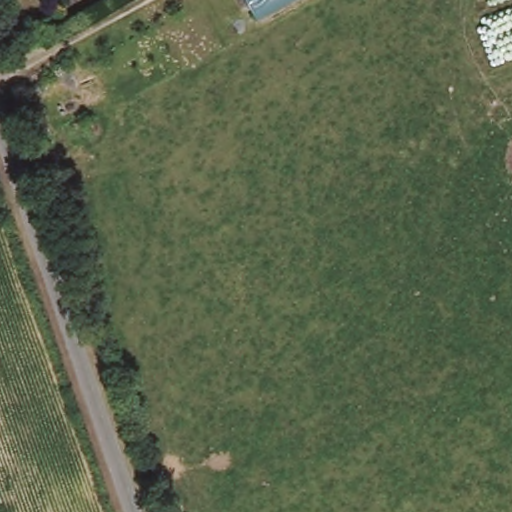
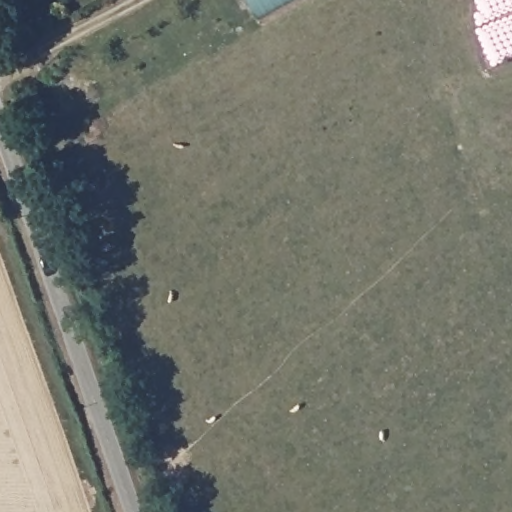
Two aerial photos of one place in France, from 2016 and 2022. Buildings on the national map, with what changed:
unchanged [(262,20),(252,0),(299,0),(262,20)]

